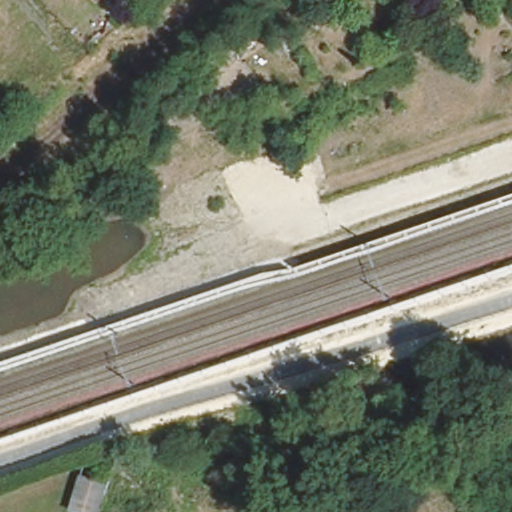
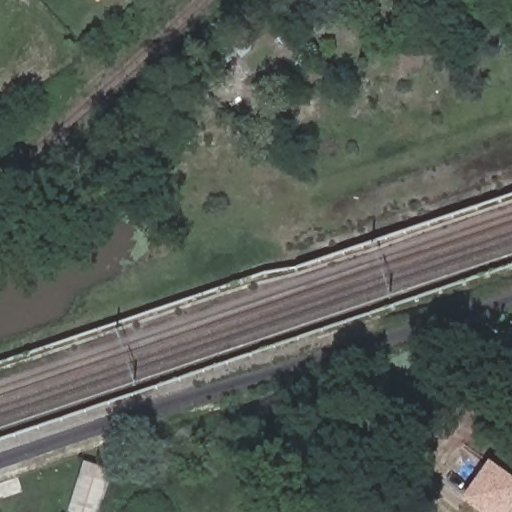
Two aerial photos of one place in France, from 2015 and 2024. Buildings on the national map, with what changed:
new [(512,479),(512,509),(510,512),(478,512),(461,500),(487,463),(512,479)]
unchanged [(69,512),(82,473),(110,481),(100,512),(69,512)]

